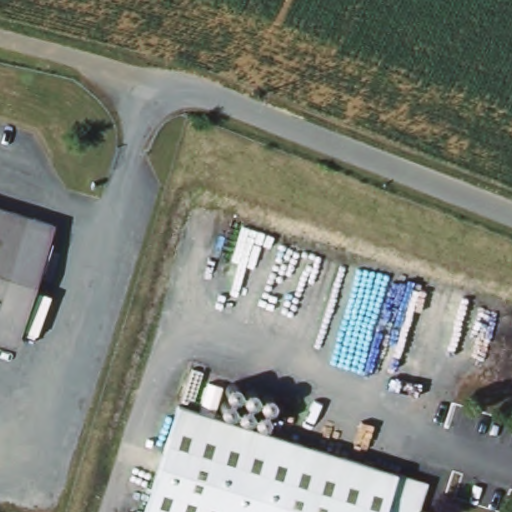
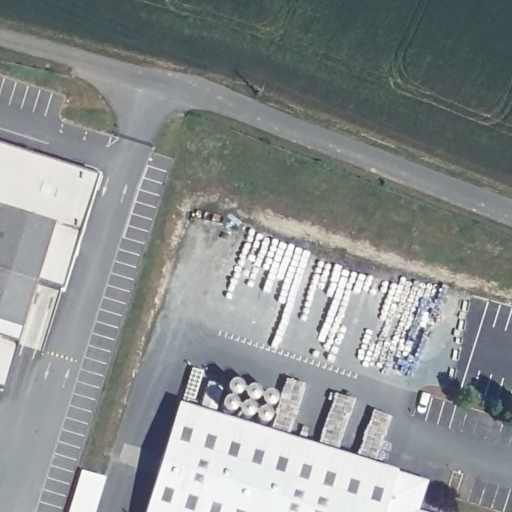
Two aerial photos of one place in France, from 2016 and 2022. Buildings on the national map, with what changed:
new [(0,208),(0,147),(96,177),(61,290),(36,282),(55,226),(0,208)]
unchanged [(18,340),(0,334),(0,208),(55,226),(18,340)]
new [(1,390),(0,389),(0,334),(18,340),(1,390)]
unchanged [(433,483),(423,512),(149,512),(183,405),(433,483)]

